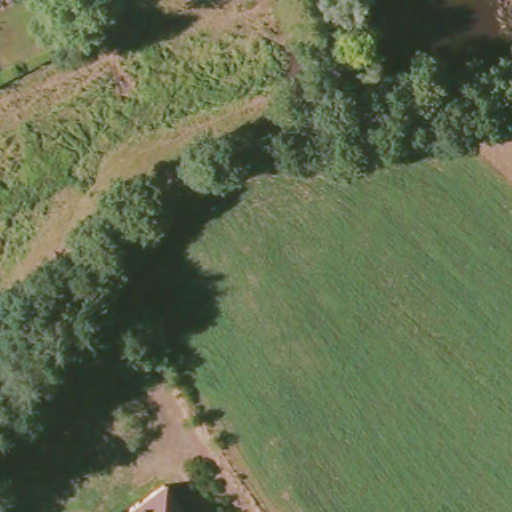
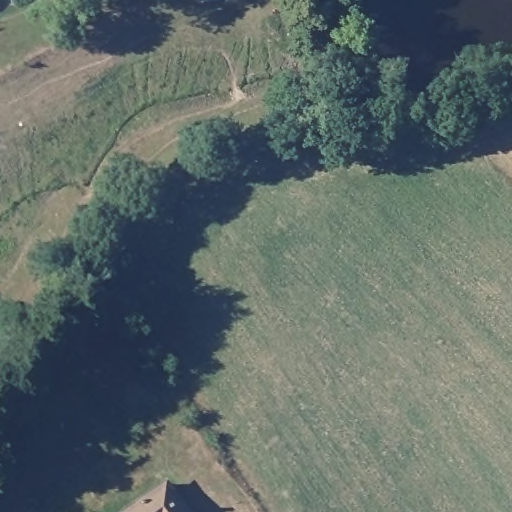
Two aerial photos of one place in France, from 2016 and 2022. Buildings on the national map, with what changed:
unchanged [(172,484),(191,512),(145,512),(141,505),(172,484)]
unchanged [(145,512),(131,512),(141,505),(145,512)]

